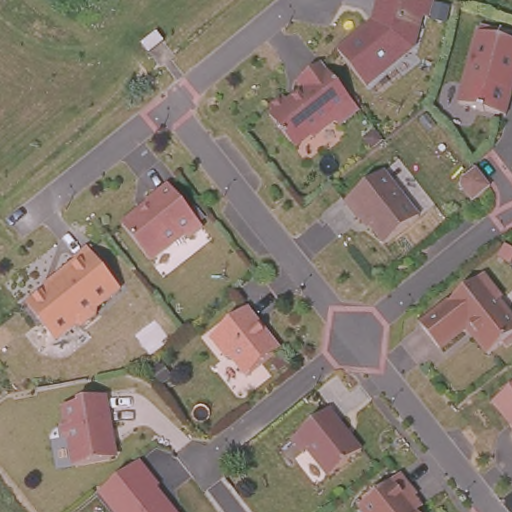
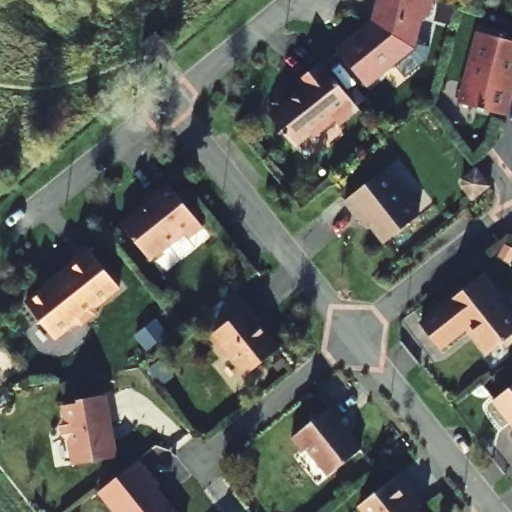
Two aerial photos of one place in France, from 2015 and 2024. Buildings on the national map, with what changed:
unchanged [(422,10),(415,43),(370,84),(340,50),(365,27),(367,29),(375,21),(374,20),(378,0),(431,0),(428,12),(422,10)]
unchanged [(511,94),(505,98),(500,117),(459,106),(478,35),(512,44),(512,91),(511,94)]
unchanged [(356,105),(336,121),(332,116),(311,133),(308,130),(292,143),(274,120),(278,117),(267,103),(281,91),(287,99),(303,86),(296,78),(320,59),(356,105)]
unchanged [(417,221),(382,247),(361,220),(357,223),(343,205),(382,175),(417,221)]
unchanged [(138,210),(142,211),(150,204),(147,201),(169,183),(203,225),(189,237),(185,232),(151,259),(122,223),(138,210)]
unchanged [(93,303),(92,311),(79,321),(71,320),(52,335),(24,299),(74,259),(71,255),(85,244),(117,284),(93,303)]
unchanged [(495,306),(512,327),(512,337),(485,358),(471,340),(473,338),(467,329),(436,353),(417,329),(479,280),(498,303),(495,306)]
unchanged [(257,325),(254,328),(264,340),(269,341),(275,349),(274,353),(275,354),(246,376),(240,375),(229,361),(221,360),(206,341),(245,310),(257,325)]
unchanged [(512,388),(512,433),(490,405),(512,388)]
unchanged [(108,428),(103,429),(105,440),(110,444),(113,456),(108,462),(71,469),(66,443),(61,439),(59,430),(63,424),(60,411),(75,408),(75,404),(103,399),(108,428)]
unchanged [(325,478),(304,451),(299,455),(288,440),(322,413),(355,454),(325,478)]
unchanged [(156,486),(153,488),(171,512),(113,512),(97,491),(129,466),(136,461),(156,486)]
unchanged [(394,473),(411,495),(404,501),(412,512),(357,512),(353,506),(394,473)]

